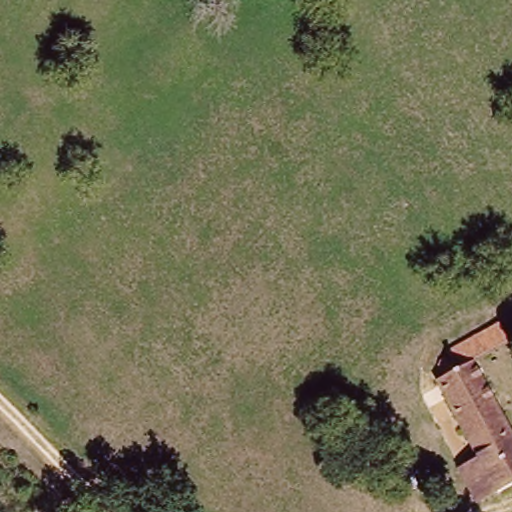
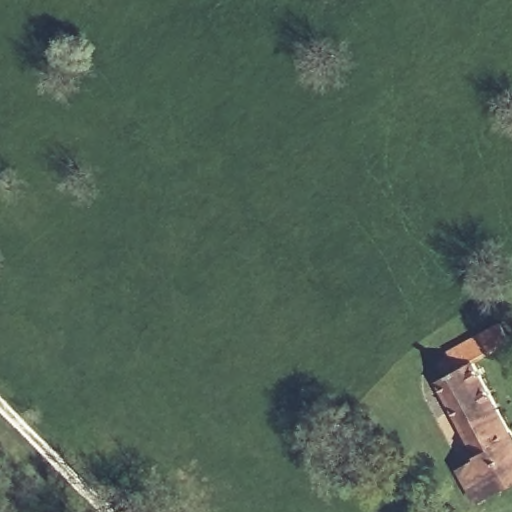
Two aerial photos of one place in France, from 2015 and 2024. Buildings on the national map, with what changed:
unchanged [(444,346),(494,325),(504,345),(472,361),(512,442),(512,478),(488,490),(442,394),(430,367),(444,346)]

